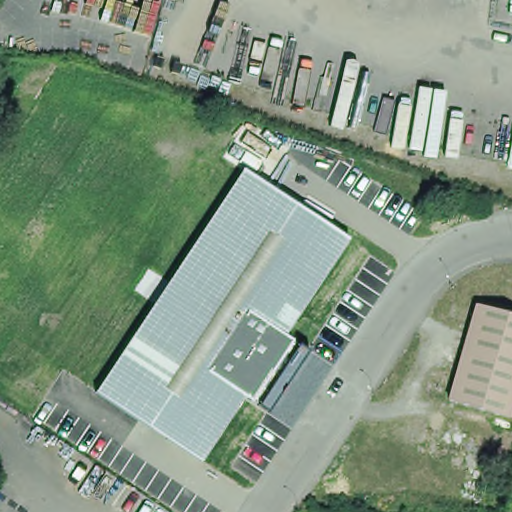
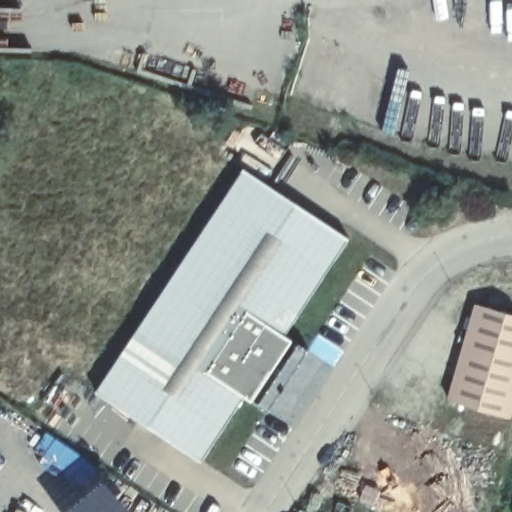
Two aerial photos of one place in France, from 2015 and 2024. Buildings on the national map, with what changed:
unchanged [(97,390),(243,166),(348,235),(287,331),(297,337),(280,360),(282,369),(278,375),(268,377),(254,398),(246,393),(204,459),(97,390)]
unchanged [(509,417),(449,398),(478,302),(512,312),(512,407),(509,417)]

